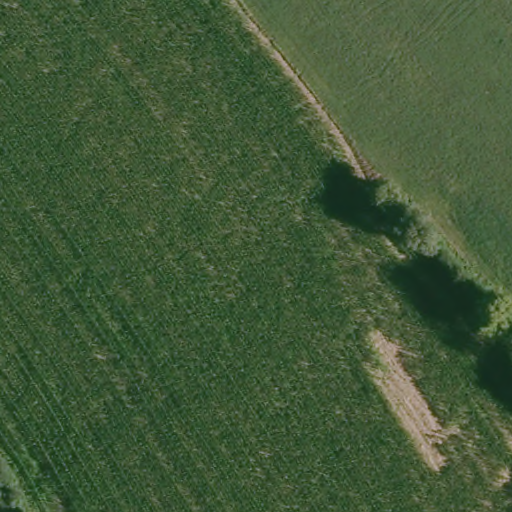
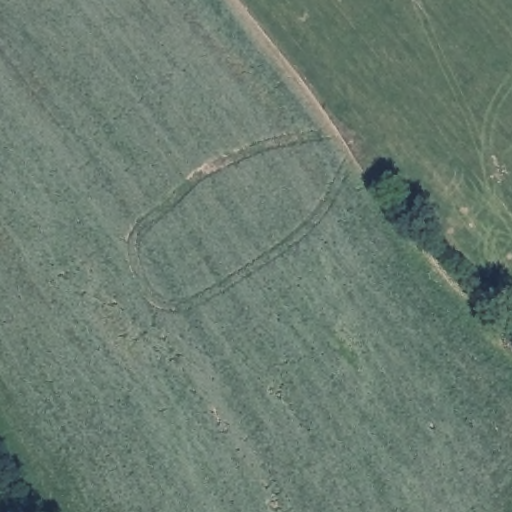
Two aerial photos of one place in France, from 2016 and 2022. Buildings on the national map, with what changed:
[]

